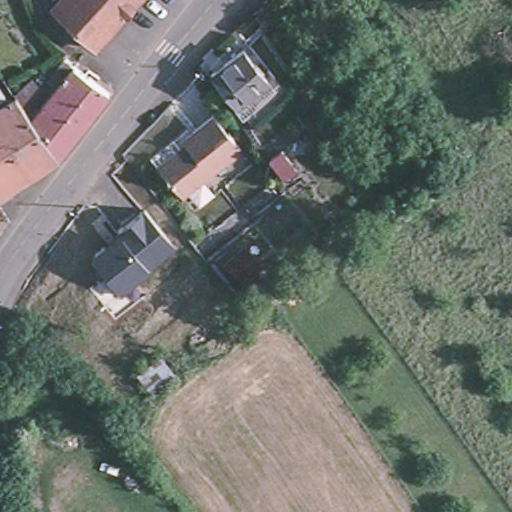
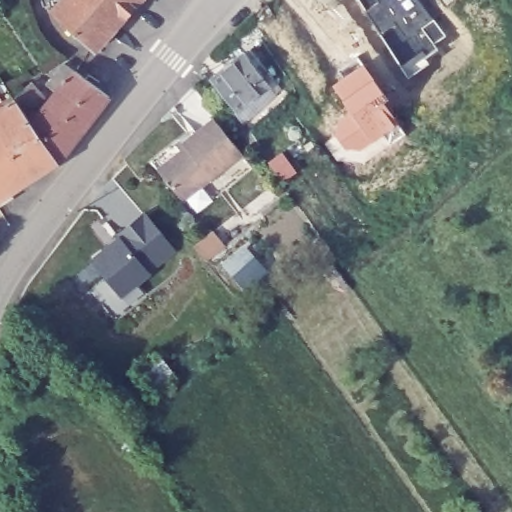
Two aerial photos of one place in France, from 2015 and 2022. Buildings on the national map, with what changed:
unchanged [(47,7),(54,0),(131,0),(90,46),(47,7)]
new [(432,46),(438,53),(424,60),(427,66),(408,80),(358,0),(417,0),(445,37),(432,46)]
unchanged [(256,24),(269,10),(278,23),(283,31),(268,41),(265,37),(256,24)]
unchanged [(266,74),(262,77),(268,86),(235,110),(212,76),(245,52),(255,67),(260,64),(266,74)]
new [(386,102),(382,107),(396,126),(360,151),(346,151),(335,135),(340,122),(350,115),(335,88),(362,68),(386,102)]
unchanged [(108,96),(108,97),(83,130),(45,102),(74,69),(77,72),(108,96)]
unchanged [(16,102),(29,120),(58,162),(32,180),(0,134),(0,111),(16,102)]
unchanged [(83,130),(58,162),(29,120),(45,102),(83,130)]
unchanged [(156,171),(168,159),(182,147),(180,144),(195,131),(210,117),(237,152),(220,167),(207,179),(193,191),(181,201),(179,198),(156,171)]
unchanged [(32,180),(0,200),(0,134),(32,180)]
unchanged [(283,154),(297,174),(285,182),(271,162),(283,154)]
unchanged [(176,250),(147,271),(150,274),(123,296),(91,256),(120,235),(116,232),(144,212),(176,250)]
unchanged [(347,221),(353,229),(341,238),(335,230),(347,221)]

